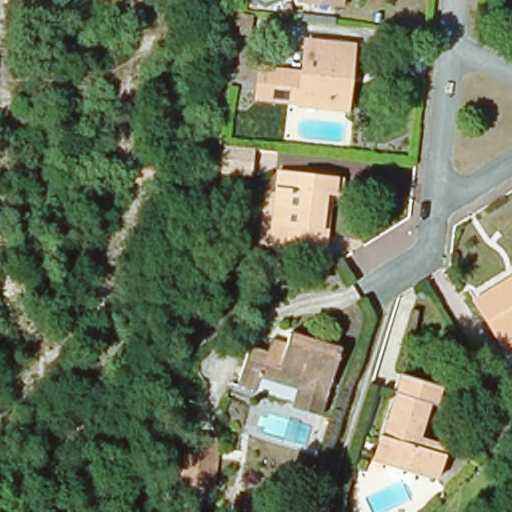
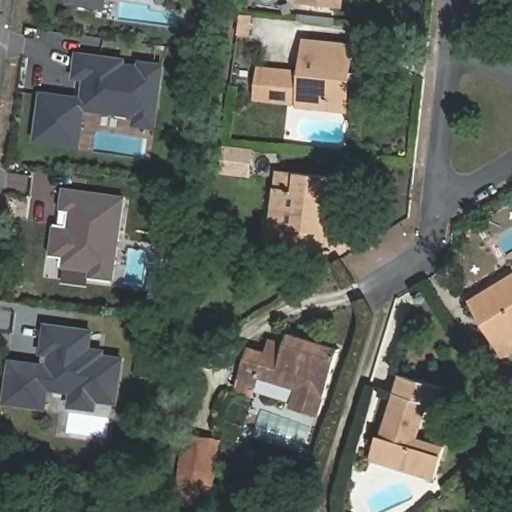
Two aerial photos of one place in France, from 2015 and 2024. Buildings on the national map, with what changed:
new [(103,6),(69,2),(69,0),(103,0),(103,6)]
unchanged [(341,11),(296,5),(297,0),(343,0),(341,11)]
unchanged [(298,109),(272,106),(276,72),(302,76),(305,44),(354,49),(351,82),(348,114),(298,109)]
new [(83,107),(78,145),(35,139),(41,94),(82,100),(85,78),(74,77),(77,55),(122,61),(121,66),(139,68),(140,63),(161,66),(155,109),(154,125),(134,122),(135,115),(136,115),(83,107)]
new [(249,148),(247,170),(222,166),(225,145),(249,148)]
unchanged [(266,232),(274,175),(337,184),(335,197),(325,197),(318,255),(284,250),(264,247),(266,232)]
new [(123,197),(111,281),(89,278),(90,269),(59,265),(60,257),(49,256),(54,224),(58,224),(60,211),(63,190),(123,197)]
unchanged [(504,352),(499,343),(472,299),(512,275),(512,347),(504,352)]
new [(46,387),(44,406),(4,401),(10,361),(48,366),(49,353),(41,352),(45,326),(89,332),(87,349),(101,351),(100,356),(120,359),(114,402),(94,398),(93,407),(69,404),(71,390),(46,387)]
unchanged [(340,362),(324,411),(318,429),(289,420),(295,402),(259,391),(255,402),(237,397),(248,361),(266,366),(270,352),(287,357),(290,346),(340,362)]
unchanged [(379,441),(382,442),(402,380),(441,392),(437,407),(431,405),(419,442),(446,450),(436,481),(373,461),(379,441)]
unchanged [(214,472),(194,468),(198,449),(217,452),(214,472)]

